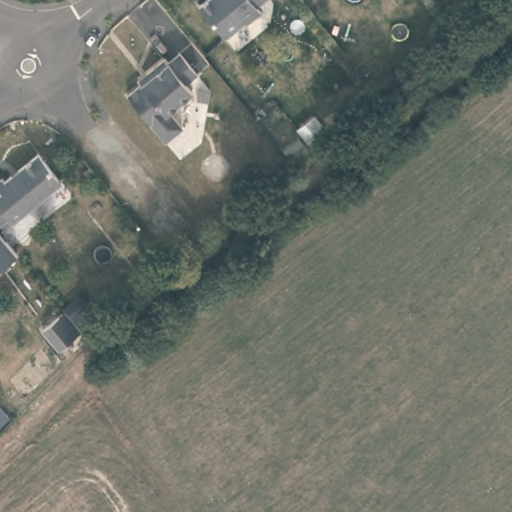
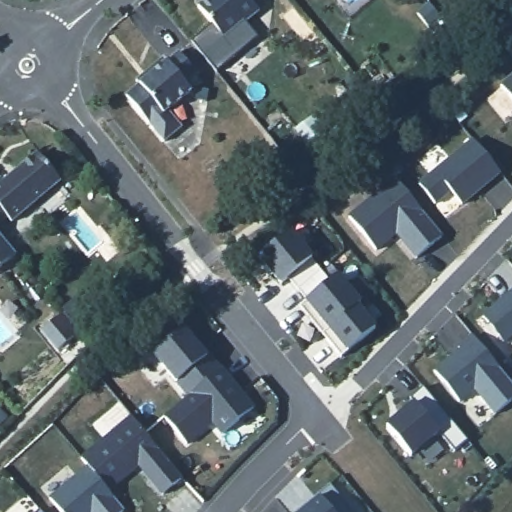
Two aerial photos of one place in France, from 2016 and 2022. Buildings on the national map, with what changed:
unchanged [(256,11),(260,16),(246,27),(245,26),(225,42),(199,11),(212,0),(267,0),(268,1),(256,11)]
unchanged [(159,62),(162,66),(174,57),(192,77),(180,87),(187,96),(163,115),(177,132),(160,146),(122,100),(135,89),(132,85),(141,77),(159,62)]
new [(512,87),(512,100),(506,92),(512,87)]
new [(475,141),(501,174),(462,205),(452,192),(436,204),(420,185),(475,141)]
unchanged [(9,180),(43,152),(66,181),(17,221),(12,216),(0,226),(0,182),(6,177),(9,180)]
new [(399,183),(446,241),(420,262),(400,237),(380,254),(352,222),(399,183)]
unchanged [(0,226),(20,258),(0,268),(0,226)]
new [(299,232),(321,258),(320,259),(337,282),(346,276),(368,303),(366,306),(383,328),(349,357),(308,306),(315,301),(297,278),(290,283),(267,256),(299,232)]
new [(512,296),(512,339),(507,343),(486,317),(512,296)]
demolished [(68,322),(80,312),(89,325),(77,334),(68,322)]
unchanged [(76,335),(59,350),(54,344),(45,332),(56,322),(62,318),(76,335)]
new [(185,334),(207,362),(210,360),(222,375),(190,402),(155,359),(185,334)]
new [(463,352),(461,349),(476,337),(512,382),(512,404),(497,416),(477,392),(462,403),(437,372),(463,352)]
new [(190,402),(222,375),(222,374),(255,414),(224,440),(214,428),(188,450),(165,422),(190,402)]
new [(417,406),(412,401),(426,389),(470,443),(457,454),(441,435),(413,457),(389,429),(417,406)]
new [(133,422),(184,484),(165,500),(140,471),(110,496),(90,472),(83,464),(133,422)]
new [(110,496),(123,512),(58,512),(52,504),(90,472),(110,496)]
new [(331,490),(349,512),(304,512),(307,510),(318,501),(331,490)]

